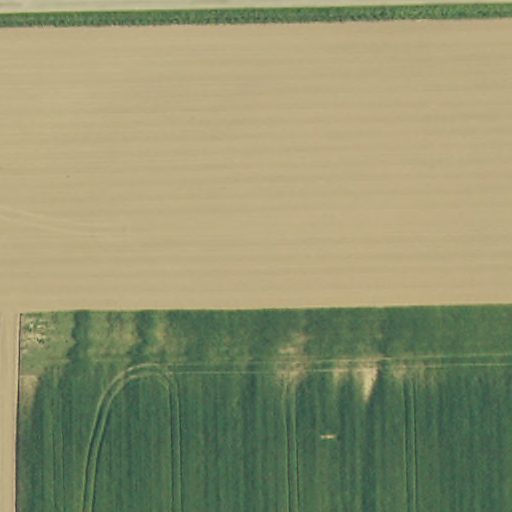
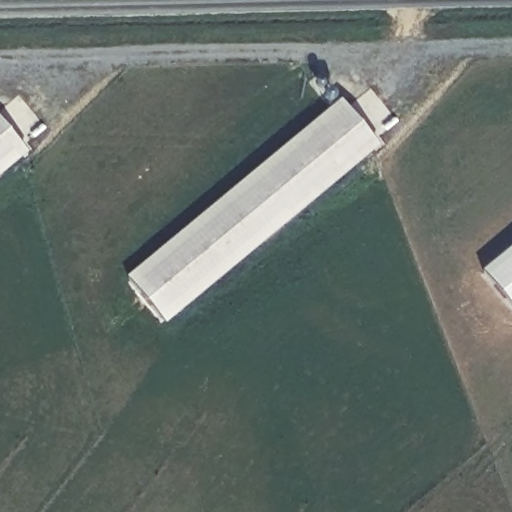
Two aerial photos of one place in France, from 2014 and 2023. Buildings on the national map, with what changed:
new [(163,321),(125,276),(339,97),(378,147),(163,321)]
new [(0,120),(27,152),(0,174),(0,120)]
new [(512,242),(512,311),(478,270),(512,242)]

